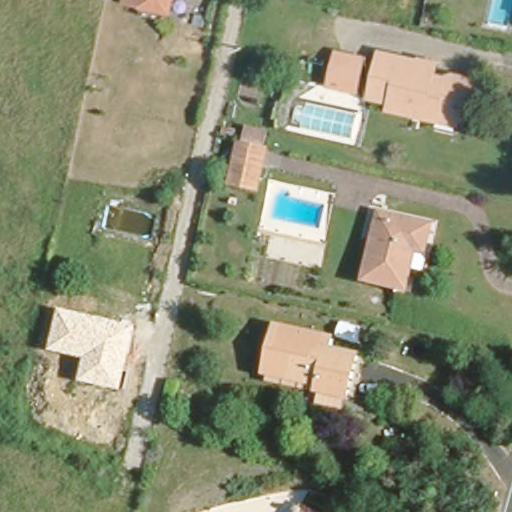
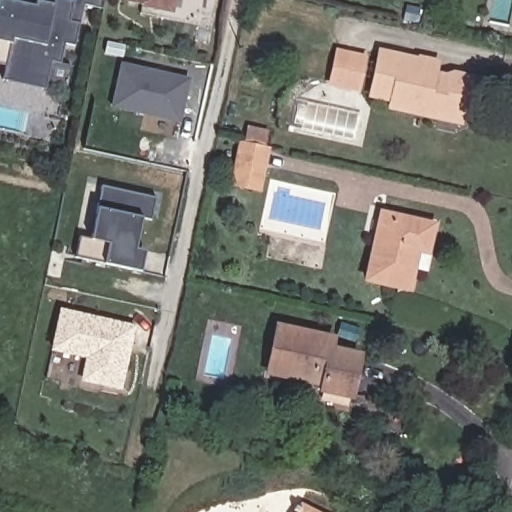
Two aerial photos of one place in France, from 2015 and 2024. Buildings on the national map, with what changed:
new [(34,0),(36,0),(54,4),(54,0),(61,0),(72,2),(73,0),(103,0),(102,8),(84,4),(84,7),(81,23),(76,45),(64,43),(60,63),(71,65),(66,85),(47,80),(44,89),(2,80),(6,63),(0,62),(0,1),(33,8),(34,0)]
unchanged [(141,1),(141,0),(163,0),(162,6),(141,1)]
unchanged [(383,44),(422,57),(424,49),(443,55),(437,74),(449,76),(451,68),(463,62),(485,69),(480,87),(462,98),(458,109),(455,113),(433,106),(431,114),(388,101),(391,92),(370,85),(383,44)]
unchanged [(362,55),(354,83),(329,75),(338,48),(362,55)]
new [(111,107),(121,62),(191,78),(181,123),(111,107)]
unchanged [(242,136),(244,137),(247,121),(269,126),(266,142),(268,142),(259,187),(232,182),(242,136)]
new [(157,198),(152,220),(141,217),(135,249),(145,252),(141,272),(104,264),(75,257),(79,236),(90,239),(97,207),(101,185),(157,198)]
unchanged [(428,216),(422,244),(411,242),(402,282),(360,274),(376,206),(428,216)]
unchanged [(85,358),(51,350),(60,308),(136,326),(122,390),(81,382),(85,358)]
unchanged [(277,326),(328,337),(326,348),(353,354),(345,394),(318,388),(319,382),(266,371),(277,326)]
unchanged [(323,512),(292,512),(297,501),(323,512)]

